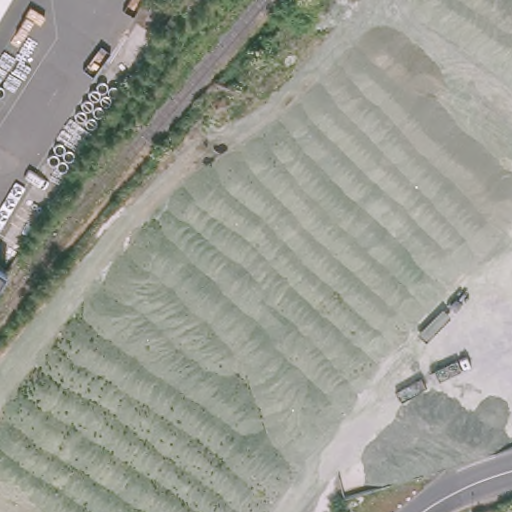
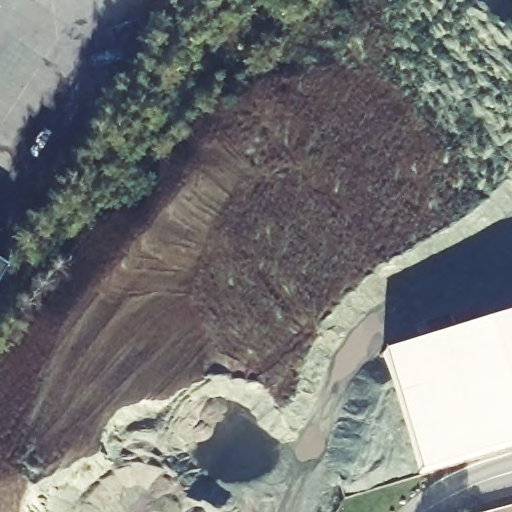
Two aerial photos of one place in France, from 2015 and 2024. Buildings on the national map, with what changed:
unchanged [(0,0),(6,0),(0,10),(0,0)]
new [(420,473),(384,352),(512,314),(512,445),(420,473)]

